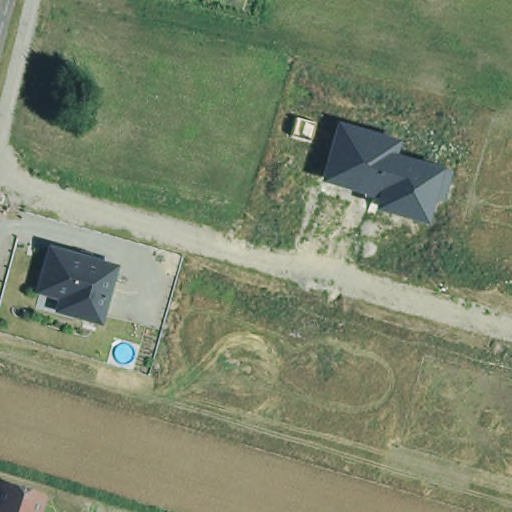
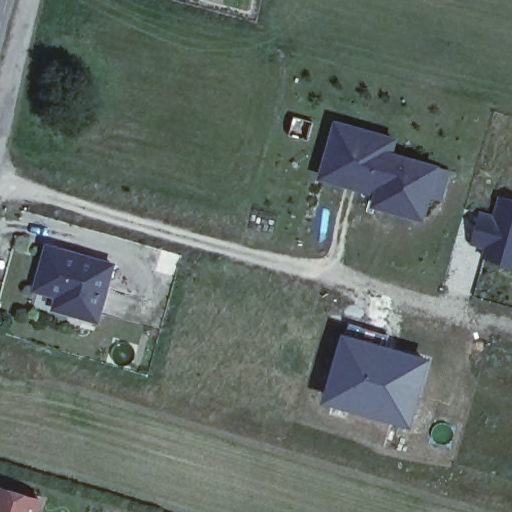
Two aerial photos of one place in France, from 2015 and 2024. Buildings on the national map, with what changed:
unchanged [(443,204),(432,200),(427,221),(372,206),(373,197),(320,180),(335,121),(400,139),(395,151),(452,169),(443,204)]
new [(512,200),(512,266),(485,258),(502,197),(512,200)]
unchanged [(60,296),(37,289),(49,247),(113,265),(98,320),(74,314),(56,308),(60,296)]
new [(341,329),(432,357),(412,427),(320,401),(341,329)]
unchanged [(38,490),(32,512),(0,512),(0,478),(38,490)]

